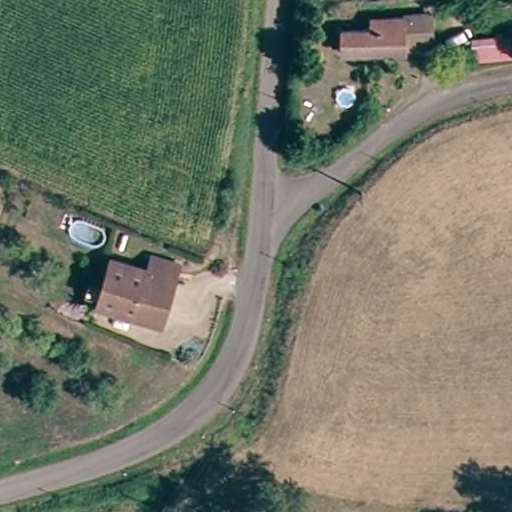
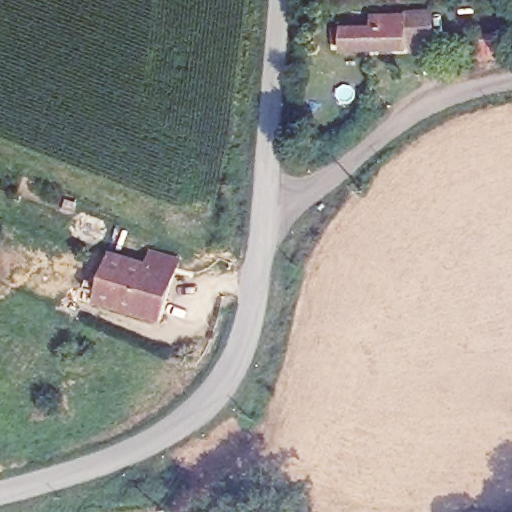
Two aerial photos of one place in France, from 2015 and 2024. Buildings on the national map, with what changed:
unchanged [(438,38),(416,40),(416,54),(354,56),(353,48),(344,49),(343,34),(374,31),(383,30),(382,22),(436,17),(438,38)]
unchanged [(473,36),(509,33),(511,54),(475,58),(473,36)]
unchanged [(104,310),(109,261),(144,265),(145,265),(147,250),(176,254),(174,269),(169,318),(104,310)]

